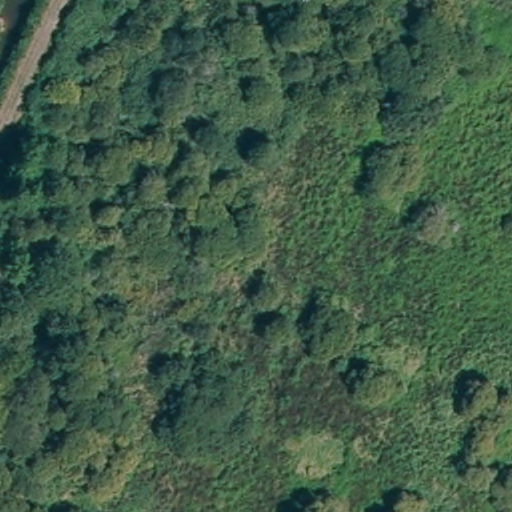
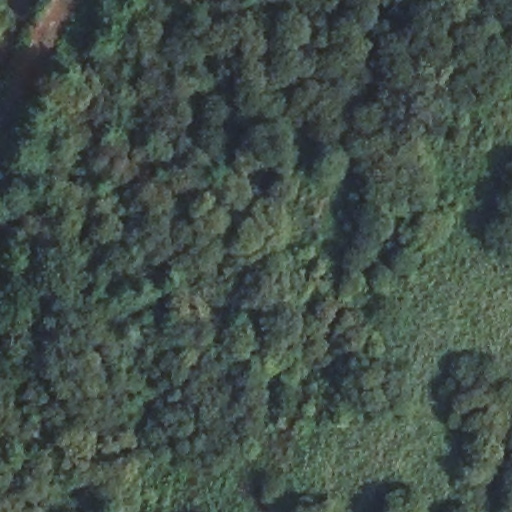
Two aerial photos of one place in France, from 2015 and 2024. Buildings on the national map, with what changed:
[]

